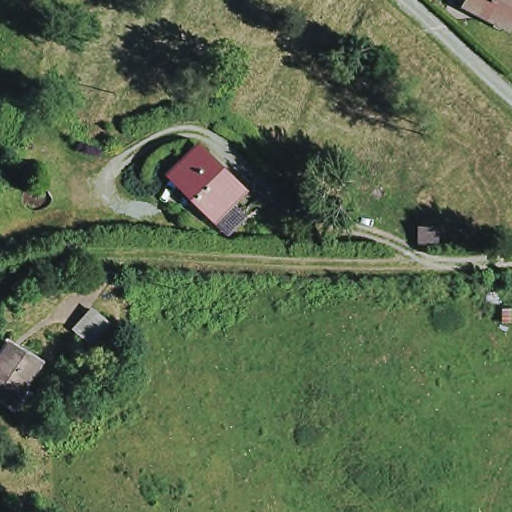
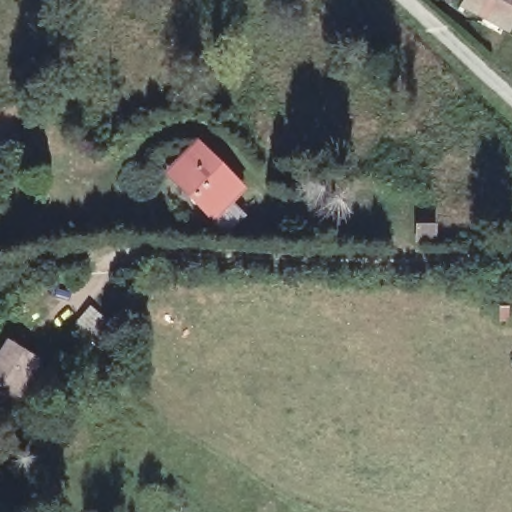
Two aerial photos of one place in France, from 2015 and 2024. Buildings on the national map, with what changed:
unchanged [(476,0),(512,0),(512,21),(476,0)]
unchanged [(197,136),(246,189),(233,202),(250,223),(226,244),(162,172),(197,136)]
unchanged [(415,224),(435,224),(435,242),(415,242),(415,224)]
unchanged [(45,364),(26,391),(0,373),(0,371),(18,344),(45,364)]

